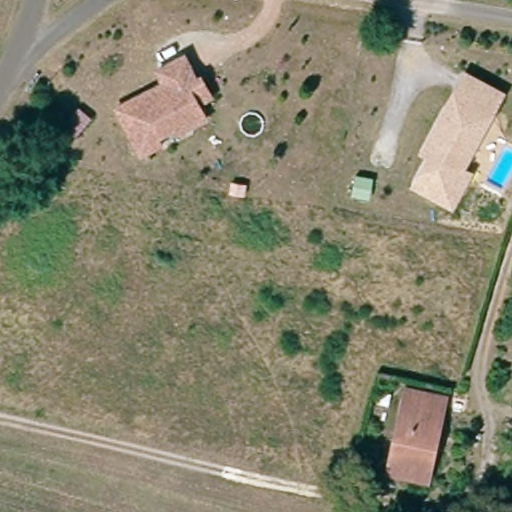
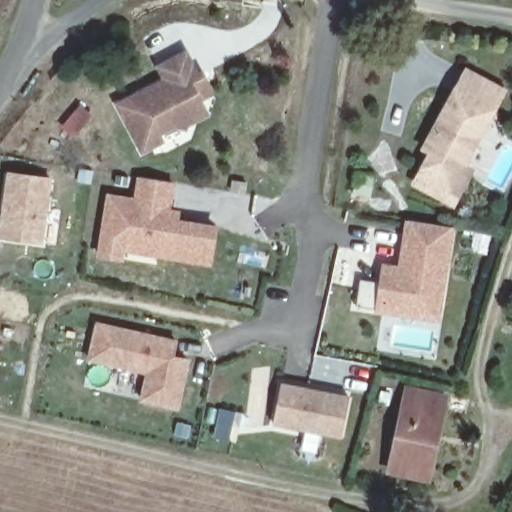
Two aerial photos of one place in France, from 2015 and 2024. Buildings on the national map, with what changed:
unchanged [(200,109),(193,113),(188,125),(178,122),(141,143),(118,104),(161,78),(158,71),(186,55),(199,75),(204,71),(216,92),(204,97),(198,102),(200,109)]
unchanged [(503,97),(473,139),(460,130),(459,125),(473,106),(454,94),(469,74),(503,97)]
unchanged [(454,166),(463,171),(442,201),(406,177),(425,149),(419,145),(454,94),(473,106),(459,125),(460,130),(473,139),(454,166)]
new [(42,244),(0,238),(0,213),(6,171),(51,177),(42,244)]
unchanged [(365,195),(349,192),(353,173),(369,176),(365,195)]
new [(133,198),(136,176),(175,182),(170,208),(180,210),(179,219),(217,225),(211,264),(124,251),(122,261),(96,257),(105,193),(133,198)]
new [(453,227),(438,320),(375,311),(382,263),(398,266),(404,218),(453,227)]
new [(177,341),(174,354),(190,358),(178,410),(138,402),(144,373),(85,361),(95,322),(177,341)]
new [(349,396),(342,438),(274,424),(281,383),(349,396)]
unchanged [(391,472),(401,404),(403,385),(442,391),(440,411),(429,480),(391,472)]

